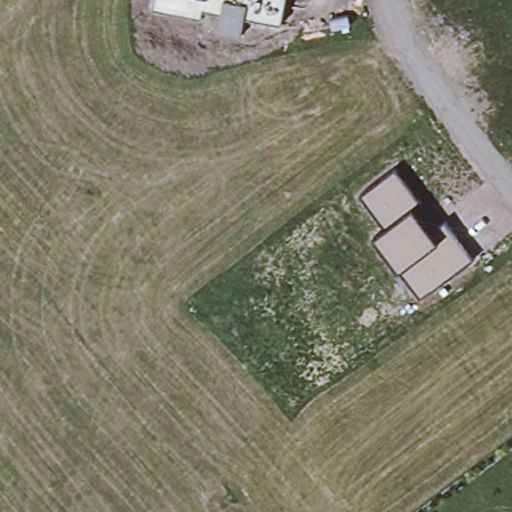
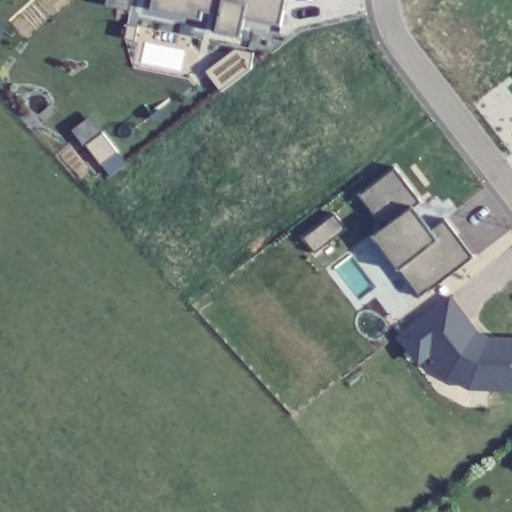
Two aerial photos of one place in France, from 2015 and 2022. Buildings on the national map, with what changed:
unchanged [(151,0),(284,0),(279,24),(260,20),(262,7),(245,4),(240,35),(214,30),(217,13),(201,10),(200,18),(149,8),(151,0)]
unchanged [(386,229),(361,194),(397,169),(423,202),(413,209),(430,228),(445,218),(473,257),(422,296),(402,269),(375,236),(386,229)]
new [(475,333),(489,341),(512,342),(512,390),(487,389),(470,389),(449,379),(425,358),(418,363),(397,336),(447,297),(475,333)]

